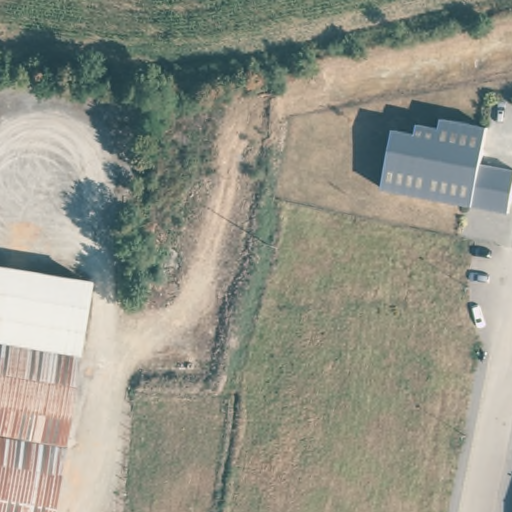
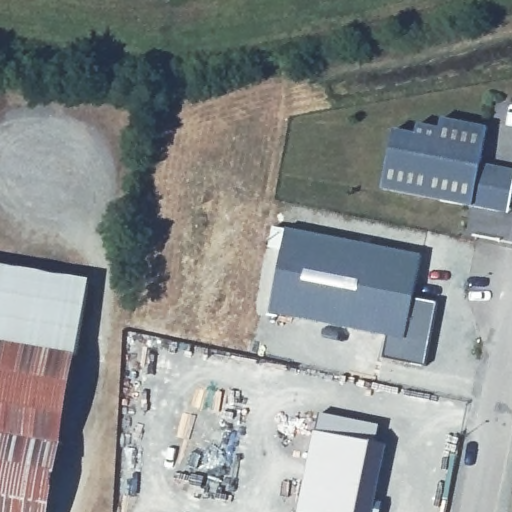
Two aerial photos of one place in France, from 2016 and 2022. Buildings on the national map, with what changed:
unchanged [(392,128),(415,133),(417,123),(438,128),(441,118),(486,127),(478,164),(512,171),(512,181),(507,203),(506,213),(496,211),(381,187),(392,128)]
new [(383,357),(388,336),(270,311),(282,250),(268,248),(272,226),(286,229),(421,255),(413,298),(438,302),(427,365),(383,357)]
unchanged [(91,279),(85,316),(0,319),(0,265),(91,279)]
unchanged [(0,342),(0,319),(85,316),(78,355),(0,342)]
unchanged [(52,512),(0,512),(0,342),(78,355),(52,512)]
new [(387,445),(377,501),(383,502),(381,512),(298,512),(315,429),(317,430),(320,412),(381,424),(376,443),(387,445)]

